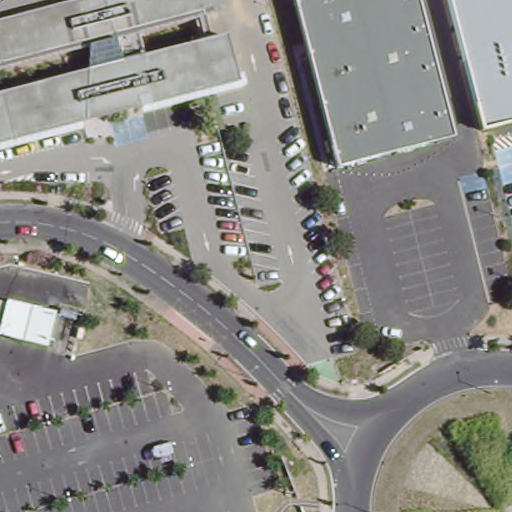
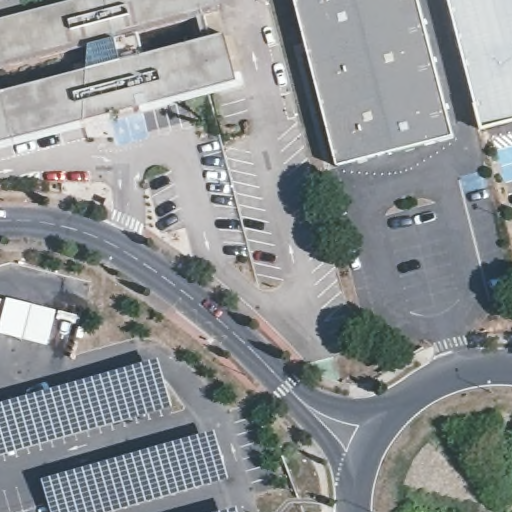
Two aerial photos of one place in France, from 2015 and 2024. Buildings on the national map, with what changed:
unchanged [(56,0),(211,0),(213,9),(198,13),(204,35),(220,31),(232,79),(128,106),(80,118),(0,139),(0,14),(56,0)]
unchanged [(336,163),(294,0),(418,0),(452,134),(336,163)]
unchanged [(449,0),(512,0),(512,119),(482,127),(449,0)]
new [(49,346),(0,335),(0,298),(7,299),(55,311),(49,346)]
new [(173,406),(0,457),(0,406),(158,358),(173,406)]
new [(229,477),(108,512),(51,512),(43,481),(215,431),(229,477)]
new [(239,512),(225,512),(237,508),(239,512)]

